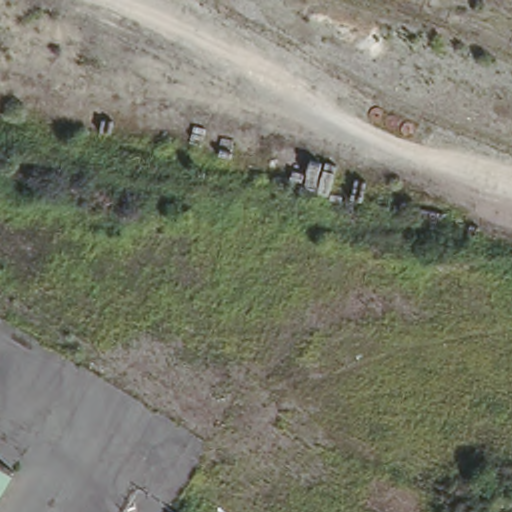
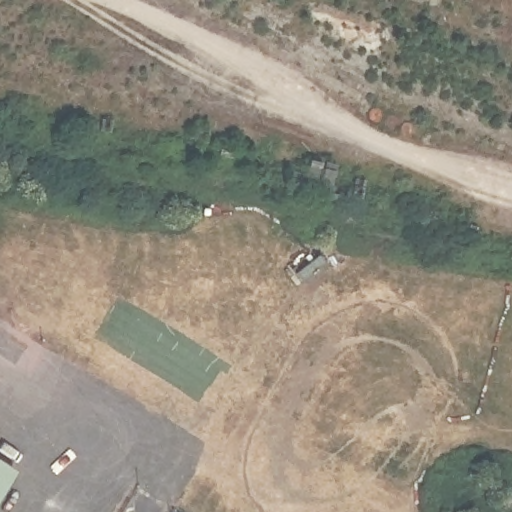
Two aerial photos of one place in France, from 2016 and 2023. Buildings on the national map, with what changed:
unchanged [(15,467),(0,494),(0,458),(15,467)]

